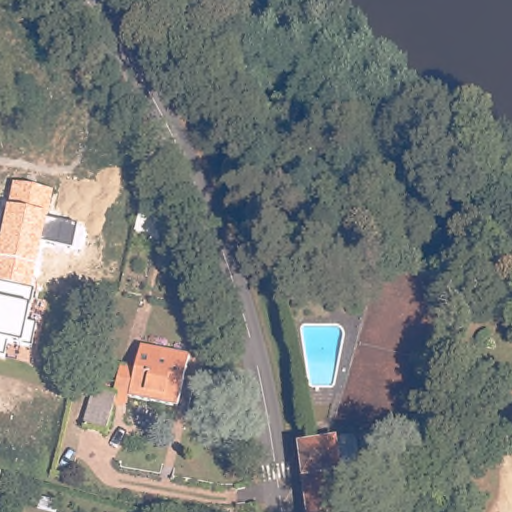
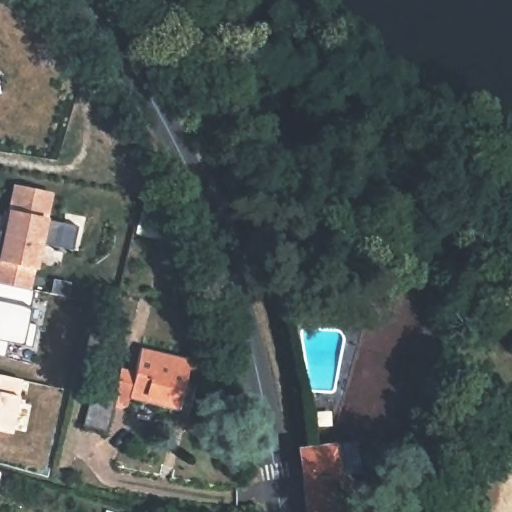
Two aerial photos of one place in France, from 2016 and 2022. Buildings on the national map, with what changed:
unchanged [(9,210),(13,184),(55,191),(49,220),(78,226),(72,250),(42,244),(37,270),(33,290),(0,283),(0,250),(9,210)]
unchanged [(33,290),(30,307),(27,323),(36,325),(32,345),(23,344),(9,341),(5,355),(0,355),(0,283),(33,290)]
unchanged [(137,371),(144,343),(193,355),(183,398),(134,386),(137,371)]
unchanged [(134,386),(183,398),(180,410),(131,400),(129,408),(116,406),(122,388),(115,386),(121,367),(137,371),(134,386)]
new [(23,380),(12,433),(0,431),(0,375),(23,380)]
unchanged [(99,381),(115,386),(122,388),(116,406),(109,429),(87,422),(99,381)]
unchanged [(334,444),(334,436),(356,434),(361,470),(331,472),(335,512),(308,512),(301,447),(334,444)]
unchanged [(3,471),(0,484),(0,471),(3,471)]

